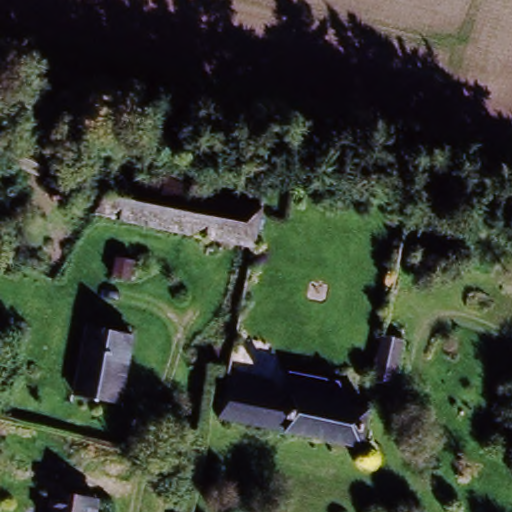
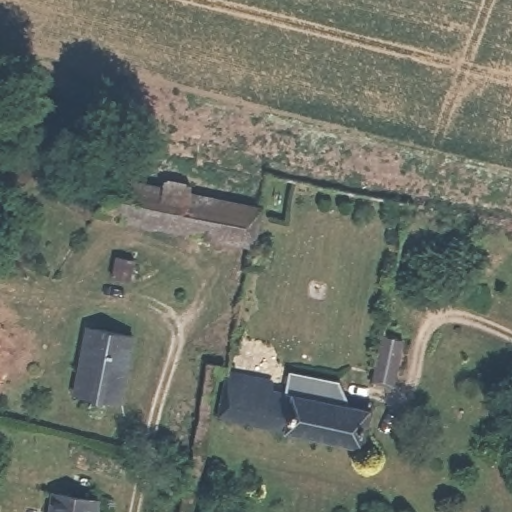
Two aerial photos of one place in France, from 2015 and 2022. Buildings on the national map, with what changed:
unchanged [(92,211),(99,179),(162,196),(165,181),(188,187),(185,197),(260,215),(254,246),(92,211)]
unchanged [(117,300),(121,282),(139,286),(135,303),(117,300)]
unchanged [(76,397),(90,330),(135,340),(120,406),(76,397)]
unchanged [(395,382),(371,378),(380,340),(401,344),(395,382)]
unchanged [(290,371),(340,381),(347,397),(347,406),(369,411),(363,446),(220,417),(227,385),(230,373),(271,382),(269,392),(286,395),(290,371)]
unchanged [(101,501),(99,512),(55,512),(55,507),(59,491),(101,501)]

